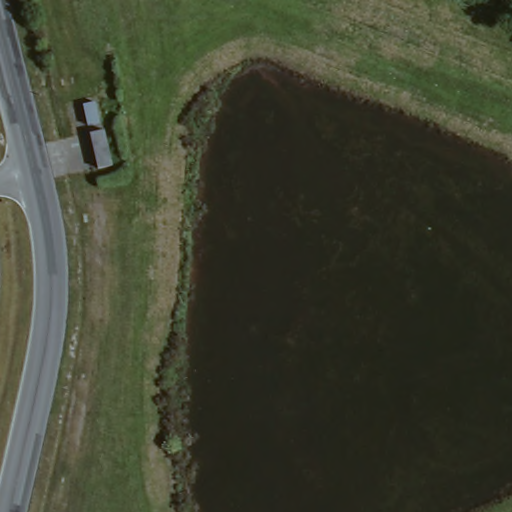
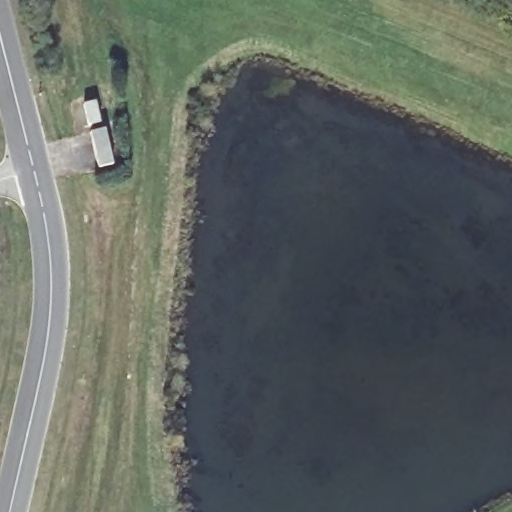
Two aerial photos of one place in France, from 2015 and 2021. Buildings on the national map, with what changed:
unchanged [(107,169),(92,172),(85,138),(100,135),(107,169)]

